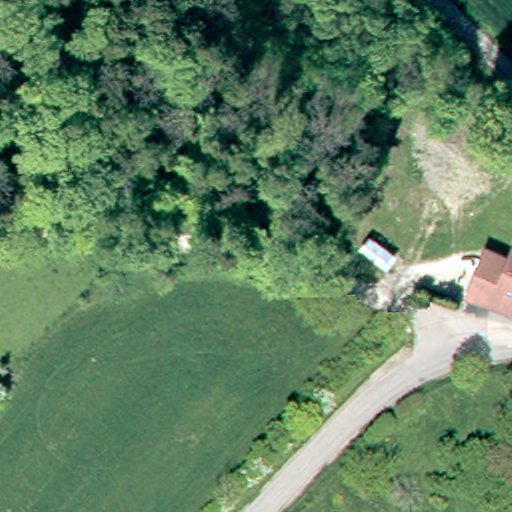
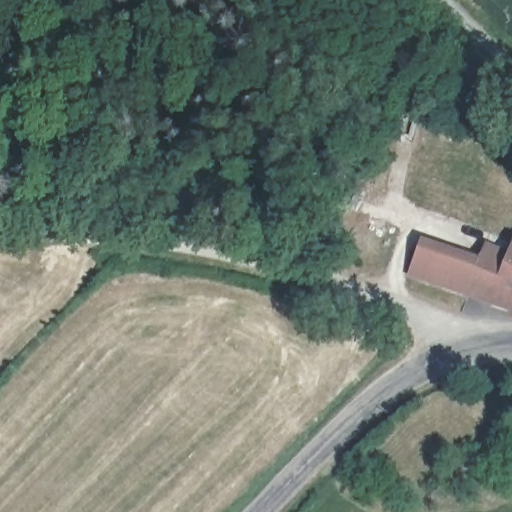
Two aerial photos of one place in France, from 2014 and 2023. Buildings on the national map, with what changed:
new [(468,291),(410,272),(422,236),(483,259),(468,291)]
unchanged [(468,291),(492,237),(512,246),(512,247),(487,300),(468,291)]
unchanged [(512,247),(512,311),(487,300),(512,247)]

